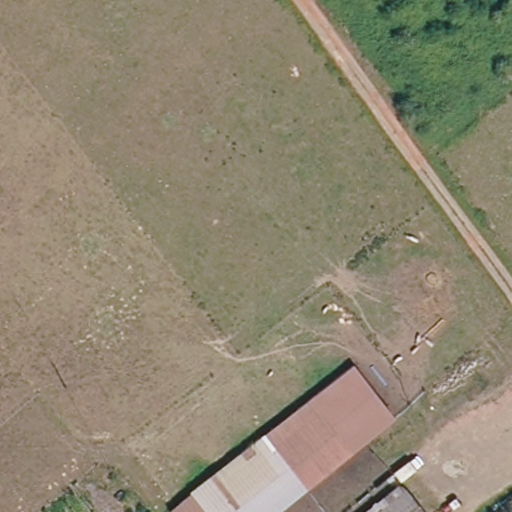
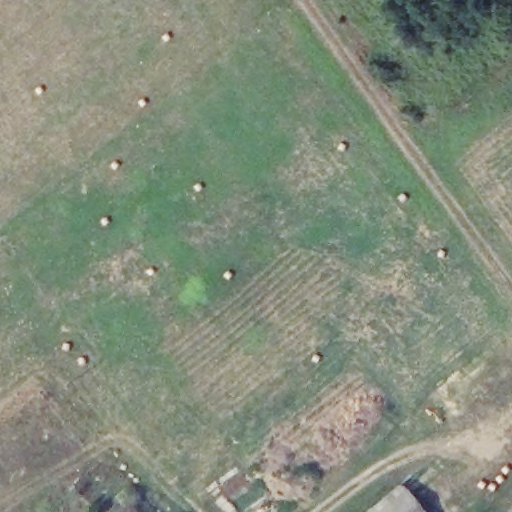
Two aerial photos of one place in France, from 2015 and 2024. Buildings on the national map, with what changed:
demolished [(281,512),(175,512),(315,396),(357,452),(281,512)]
unchanged [(422,512),(369,512),(401,486),(422,512)]

